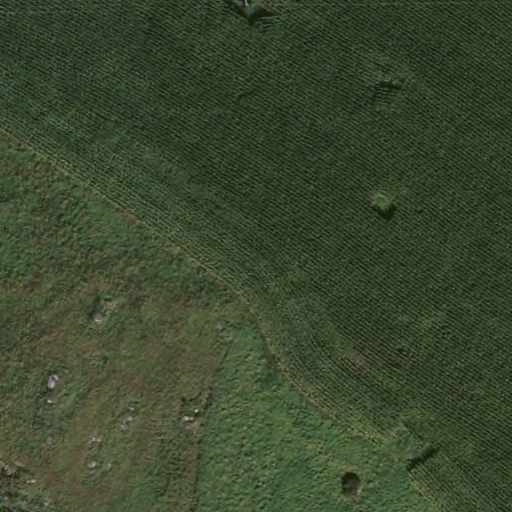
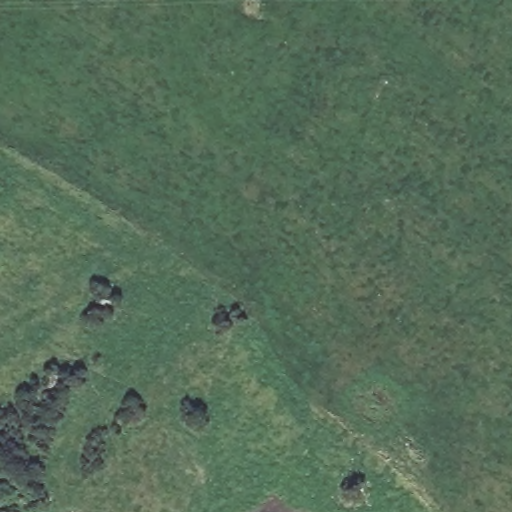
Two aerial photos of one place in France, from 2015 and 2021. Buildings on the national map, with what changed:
[]

